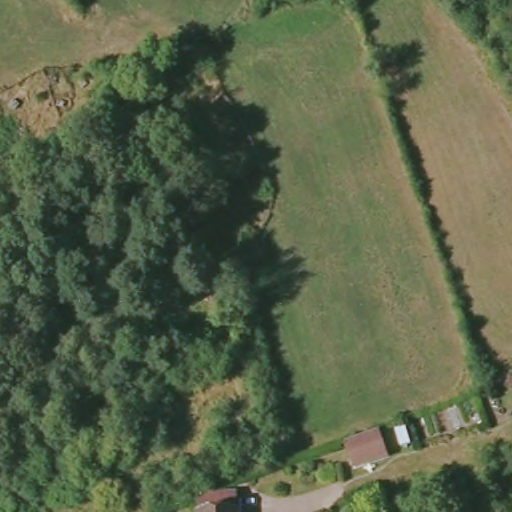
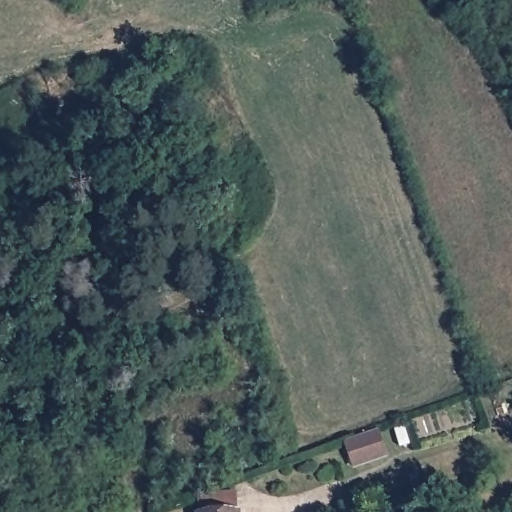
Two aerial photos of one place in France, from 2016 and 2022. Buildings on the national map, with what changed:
unchanged [(393,451),(348,467),(341,445),(386,425),(404,421),(413,446),(393,451)]

